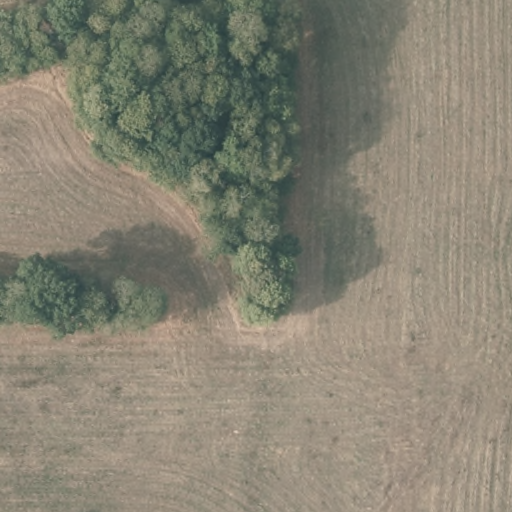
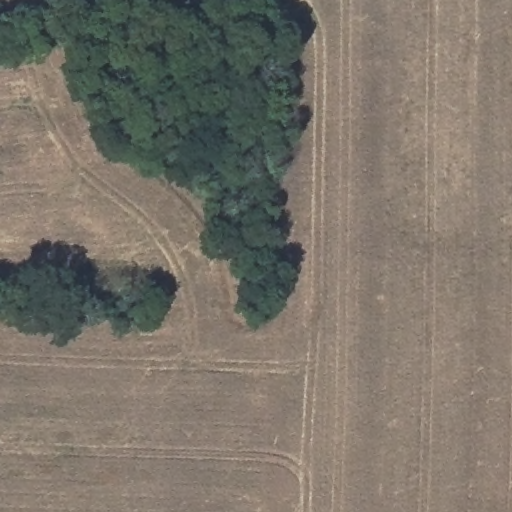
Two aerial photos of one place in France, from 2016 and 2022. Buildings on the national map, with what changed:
[]

